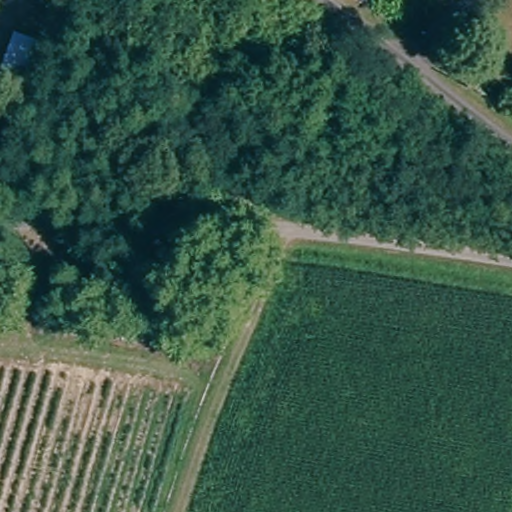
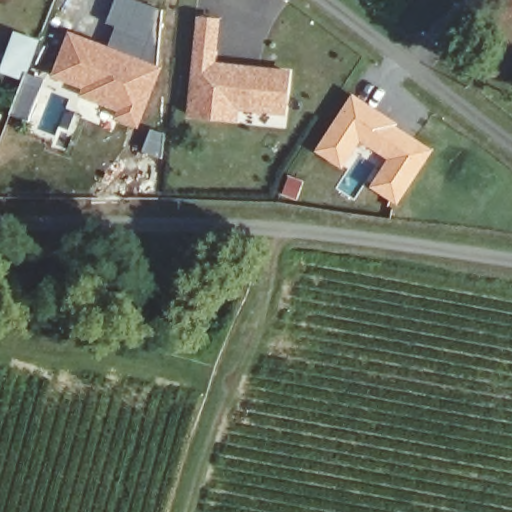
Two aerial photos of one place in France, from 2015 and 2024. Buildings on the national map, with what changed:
new [(143,0),(163,8),(159,64),(107,45),(114,27),(105,24),(112,0),(143,0)]
new [(222,19),(219,63),(291,71),(287,116),(240,111),(239,123),(187,117),(197,18),(222,19)]
new [(0,73),(0,63),(12,30),(39,40),(27,73),(44,79),(26,121),(8,114),(22,81),(0,73)]
new [(67,30),(107,45),(159,64),(159,66),(161,66),(137,130),(111,120),(114,112),(77,97),(80,91),(49,78),(67,30)]
new [(352,94),(390,118),(432,149),(396,205),(368,187),(386,159),(361,142),(342,169),(313,151),(352,94)]

